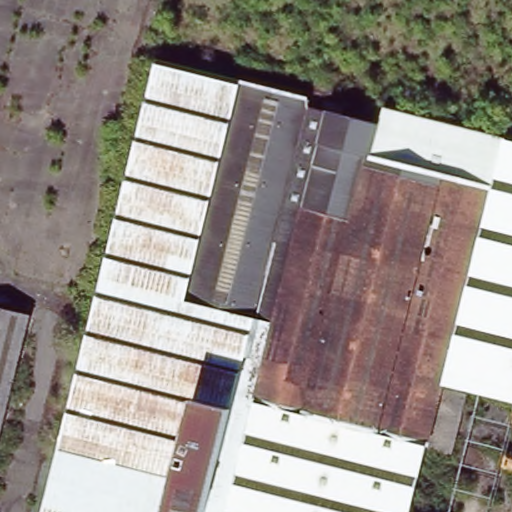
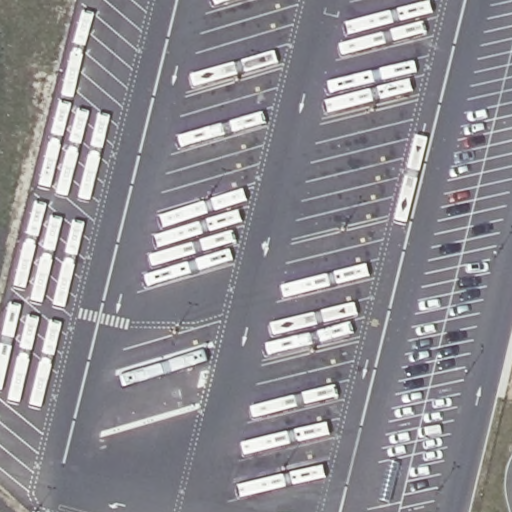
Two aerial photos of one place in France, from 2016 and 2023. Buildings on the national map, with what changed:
demolished [(305,105),(380,124),(384,109),(512,142),(512,413),(472,402),(436,393),(425,438),(407,512),(206,512),(232,408),(192,398),(172,481),(57,451),(154,60),(307,99),(305,105)]
demolished [(30,313),(0,429),(0,306),(30,313)]
demolished [(192,398),(232,408),(206,512),(165,512),(172,481),(192,398)]

